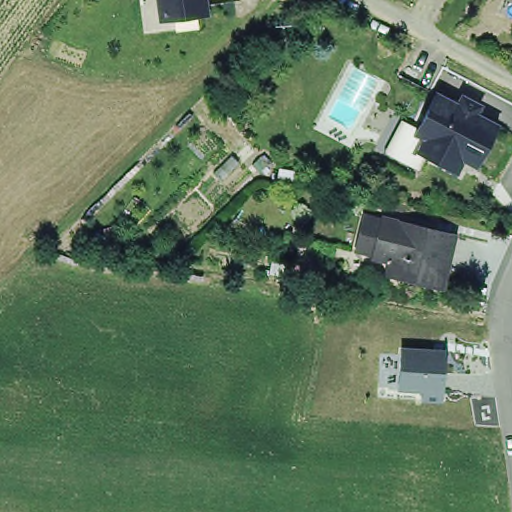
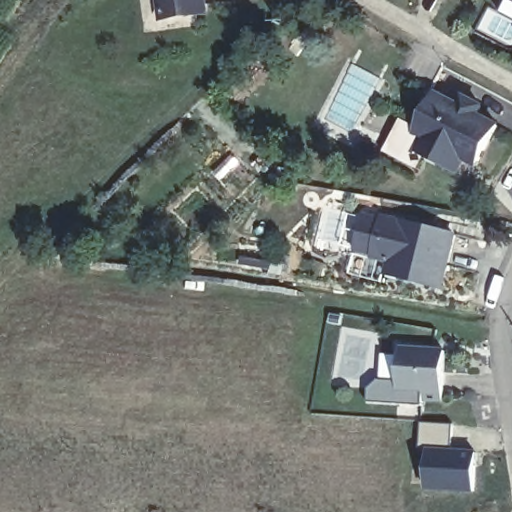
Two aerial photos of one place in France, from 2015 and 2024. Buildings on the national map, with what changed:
unchanged [(207,13),(160,20),(158,0),(205,0),(207,13)]
unchanged [(405,150),(413,135),(432,97),(453,107),(458,97),(479,108),(476,117),(492,124),(479,157),(463,150),(450,172),(427,161),(420,157),(405,150)]
unchanged [(394,268),(384,267),(385,259),(373,256),(377,223),(455,235),(448,285),(406,278),(393,277),(394,268)]
unchanged [(400,346),(444,348),(441,397),(422,396),(422,386),(398,385),(400,346)]
new [(418,445),(419,421),(451,423),(450,447),(475,450),(472,494),(423,490),(424,446),(418,445)]

